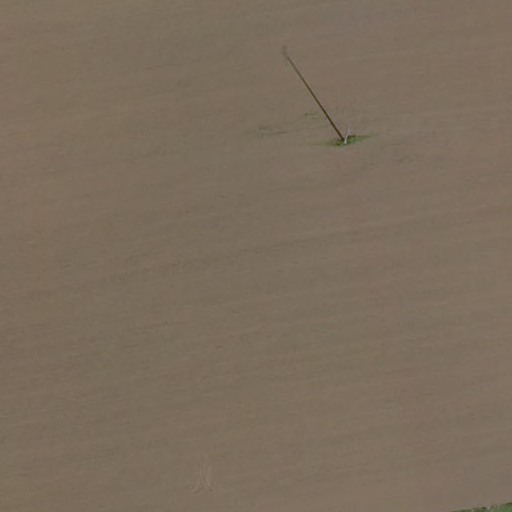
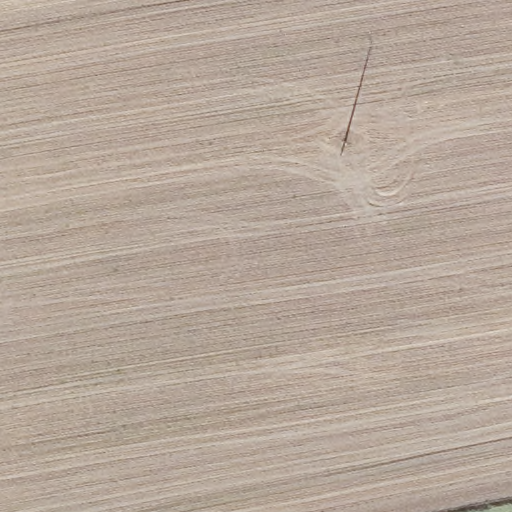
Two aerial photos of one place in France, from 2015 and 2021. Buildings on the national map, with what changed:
[]

